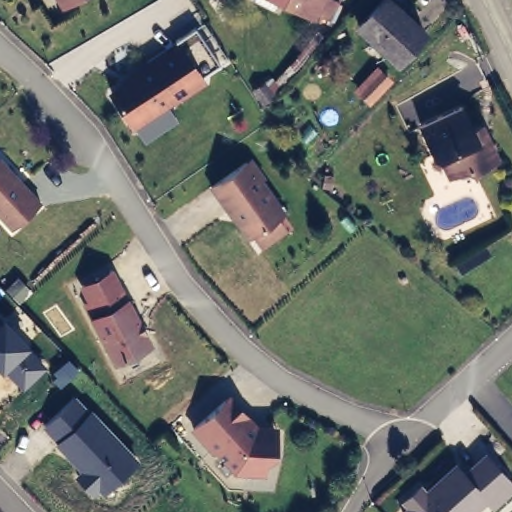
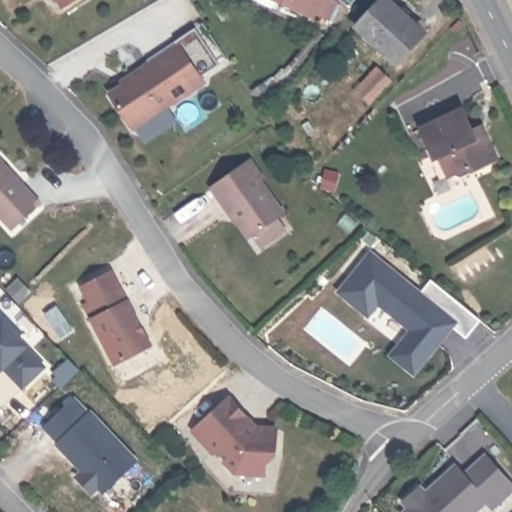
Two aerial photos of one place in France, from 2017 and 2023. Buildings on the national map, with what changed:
unchanged [(75,0),(66,6),(63,0),(75,0)]
unchanged [(279,0),(318,0),(311,15),(279,0)]
unchanged [(398,59),(360,22),(381,0),(388,0),(424,34),(398,59)]
unchanged [(137,77),(135,75),(181,44),(205,80),(178,98),(177,97),(135,125),(113,93),(137,77)]
unchanged [(470,109),(485,141),(495,137),(505,158),(480,170),(474,167),(457,175),(449,157),(442,155),(430,129),(470,109)]
unchanged [(41,202),(13,228),(0,214),(0,158),(41,202)]
unchanged [(258,242),(251,232),(246,235),(227,209),(225,211),(207,186),(242,162),(246,159),(258,177),(255,180),(278,212),(271,217),(279,227),(258,242)]
unchanged [(327,169),(336,170),(334,184),(325,182),(327,169)]
new [(392,352),(413,328),(378,300),(367,311),(341,290),(373,253),(421,293),(432,279),(465,306),(414,371),(392,352)]
unchanged [(135,323),(138,330),(143,332),(150,343),(115,362),(92,317),(96,315),(88,300),(80,286),(110,270),(118,284),(138,322),(135,323)]
unchanged [(23,389),(0,366),(0,318),(47,367),(23,389)]
unchanged [(105,494),(100,488),(95,493),(77,474),(83,467),(41,425),(73,393),(140,461),(105,494)]
unchanged [(233,472),(215,452),(211,456),(191,428),(228,394),(236,403),(239,399),(255,426),(277,429),(265,474),(233,472)]
unchanged [(487,503),(478,512),(403,512),(407,507),(401,502),(421,485),(425,487),(455,462),(465,472),(486,452),(512,479),(512,492),(494,509),(487,503)]

